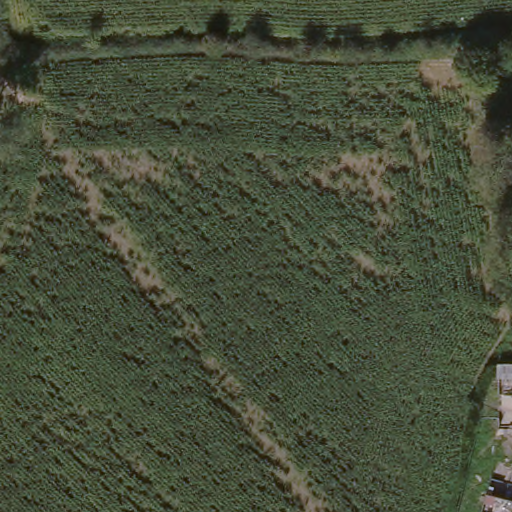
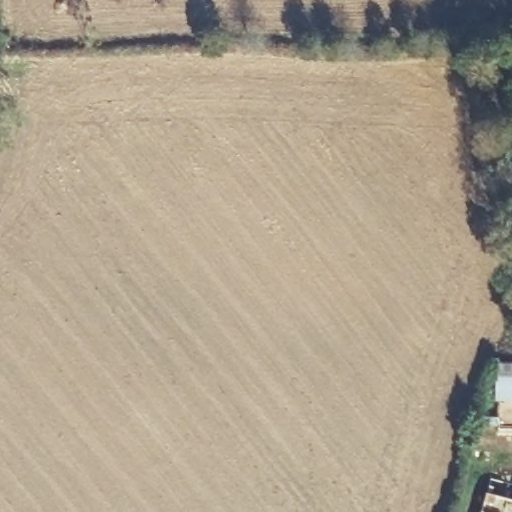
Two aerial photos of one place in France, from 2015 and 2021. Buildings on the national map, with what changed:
unchanged [(505,405),(503,360),(512,360),(512,405),(505,405)]

